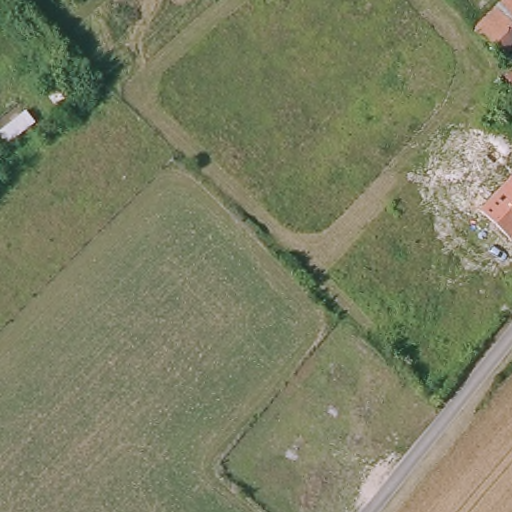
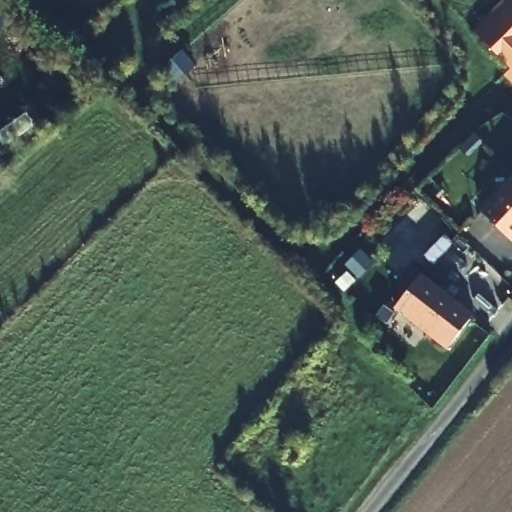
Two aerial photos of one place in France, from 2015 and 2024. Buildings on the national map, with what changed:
unchanged [(503,0),(512,0),(512,50),(494,69),(466,40),(503,0)]
new [(512,67),(512,85),(503,77),(512,67)]
new [(35,122),(4,145),(0,138),(0,128),(23,110),(35,122)]
unchanged [(512,176),(512,241),(480,211),(512,176)]
new [(355,251),(369,263),(356,277),(342,265),(355,251)]
new [(449,349),(397,311),(424,274),(474,314),(449,349)]

